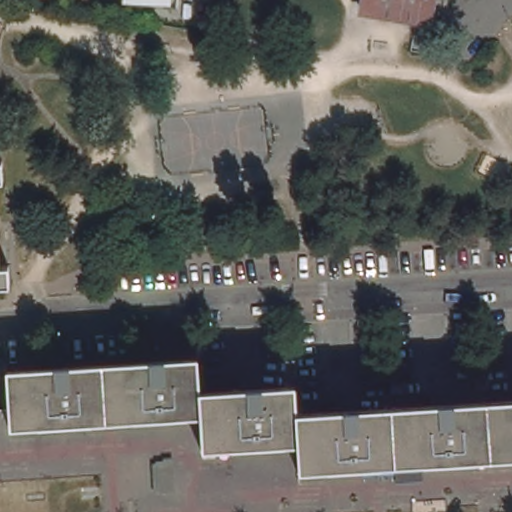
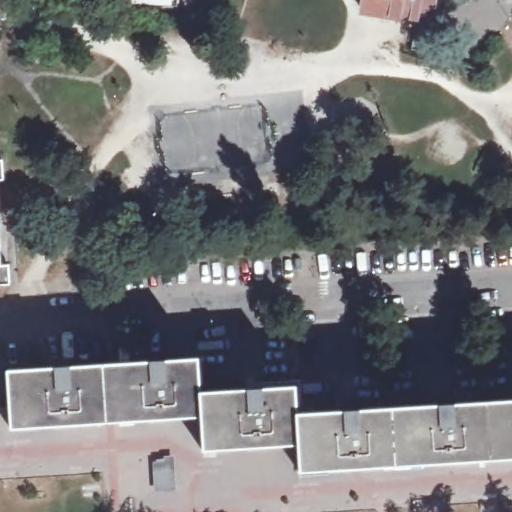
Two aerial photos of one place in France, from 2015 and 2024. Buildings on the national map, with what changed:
unchanged [(360,0),(440,0),(438,12),(360,0)]
unchanged [(4,282),(0,283),(0,207),(4,282)]
unchanged [(198,358),(201,393),(296,386),(299,413),(512,400),(512,458),(301,472),(299,442),(206,449),(203,415),(13,428),(9,371),(198,358)]
unchanged [(155,462),(165,461),(165,457),(176,457),(178,491),(156,492),(155,462)]

